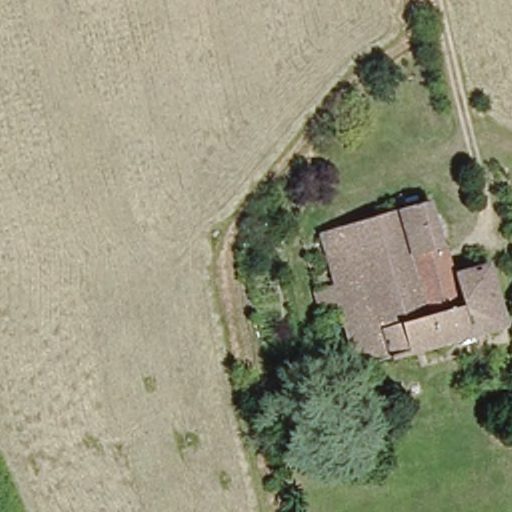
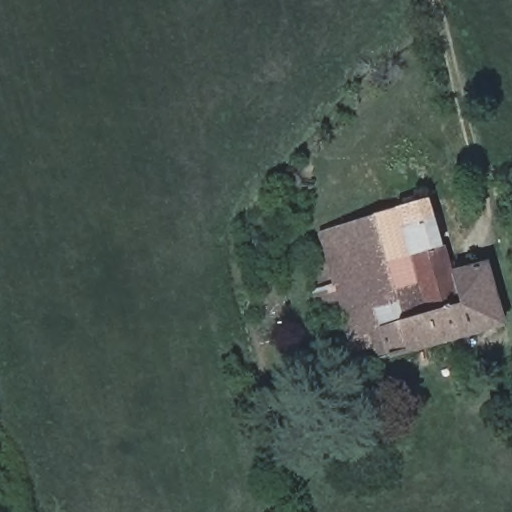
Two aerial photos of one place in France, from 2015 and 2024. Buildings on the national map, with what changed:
unchanged [(312,160),(314,171),(307,172),(305,162),(312,160)]
unchanged [(427,200),(438,237),(451,270),(485,261),(501,320),(359,357),(349,323),(330,328),(318,285),(336,281),(322,227),(427,200)]
unchanged [(344,432),(345,442),(331,448),(328,437),(344,432)]

